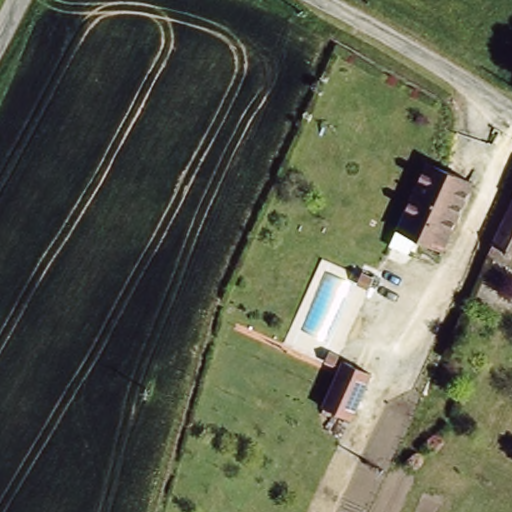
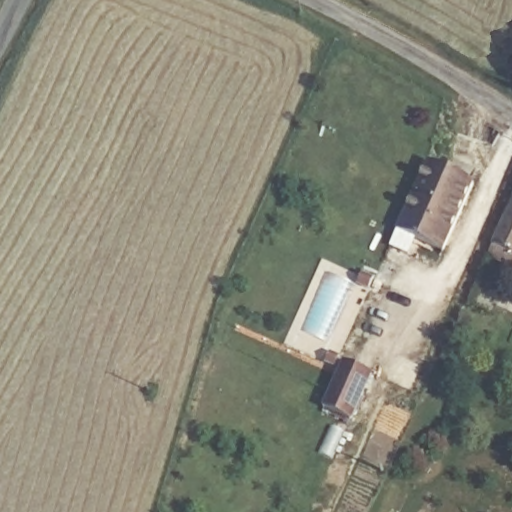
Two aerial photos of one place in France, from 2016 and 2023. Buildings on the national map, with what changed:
unchanged [(428,166),(470,188),(438,251),(396,229),(428,166)]
unchanged [(493,249),(512,208),(512,258),(493,249)]
unchanged [(373,373),(353,420),(321,404),(335,370),(323,363),(328,352),(373,373)]

